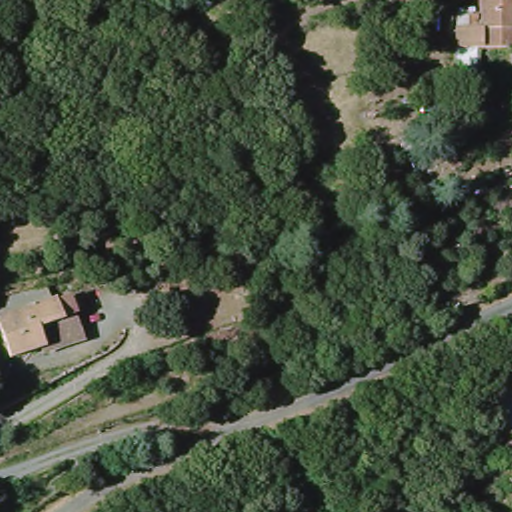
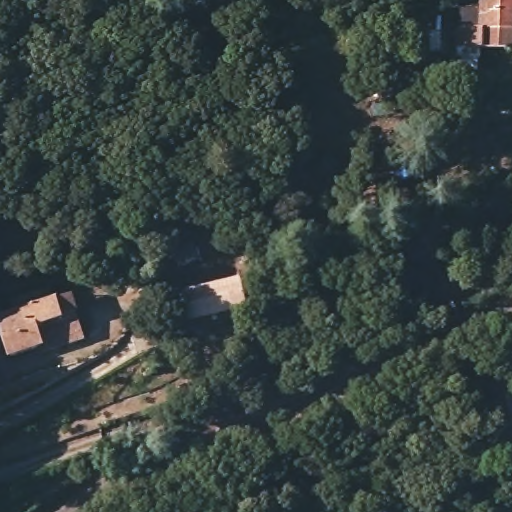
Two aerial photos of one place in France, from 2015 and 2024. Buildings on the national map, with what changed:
unchanged [(469,50),(471,11),(489,11),(489,0),(512,0),(512,33),(512,51),(489,51),(469,50)]
new [(190,322),(182,290),(240,275),(249,308),(190,322)]
unchanged [(50,351),(47,344),(19,355),(4,317),(70,291),(87,336),(50,351)]

